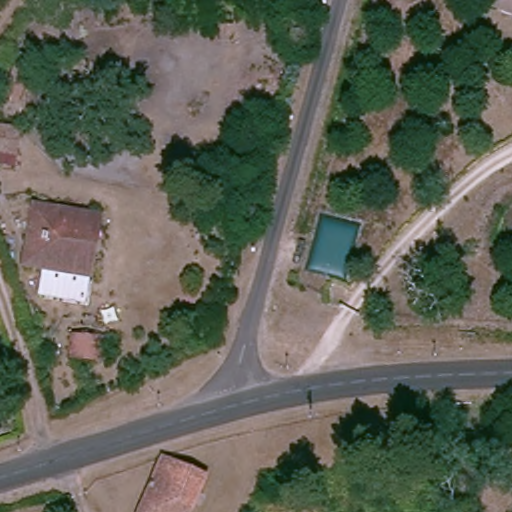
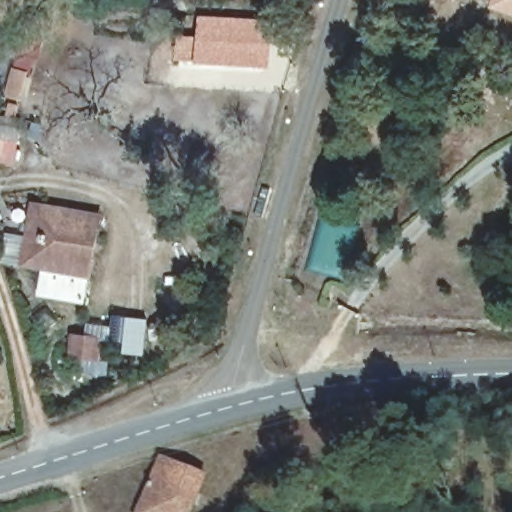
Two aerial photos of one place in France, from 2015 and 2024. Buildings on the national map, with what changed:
unchanged [(496,10),(500,0),(512,0),(512,16),(496,10)]
new [(175,33),(195,35),(197,14),(275,19),(271,67),(194,62),(172,58),(175,33)]
unchanged [(0,132),(0,105),(24,117),(11,138),(0,132)]
unchanged [(33,199),(97,212),(88,270),(83,292),(39,284),(43,261),(24,258),(33,199)]
unchanged [(92,356),(61,354),(66,333),(94,337),(92,356)]
unchanged [(205,492),(197,512),(136,512),(157,459),(168,455),(165,461),(210,479),(205,492)]

